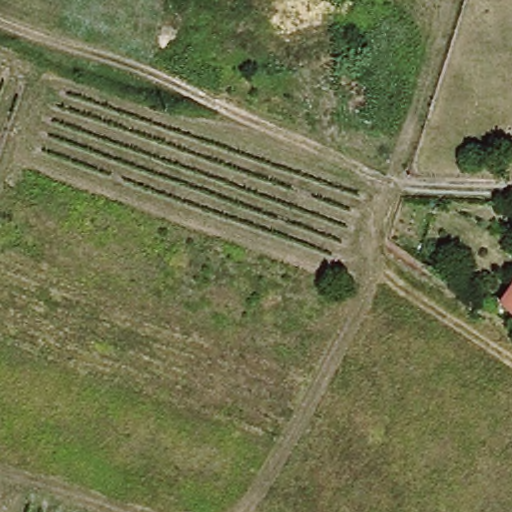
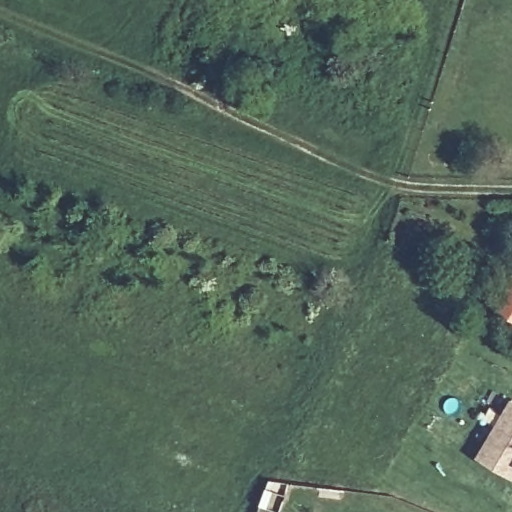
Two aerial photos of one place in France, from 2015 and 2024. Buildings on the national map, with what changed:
unchanged [(512,288),(512,321),(496,310),(512,288)]
new [(476,459),(511,401),(512,401),(512,478),(511,480),(476,459)]

